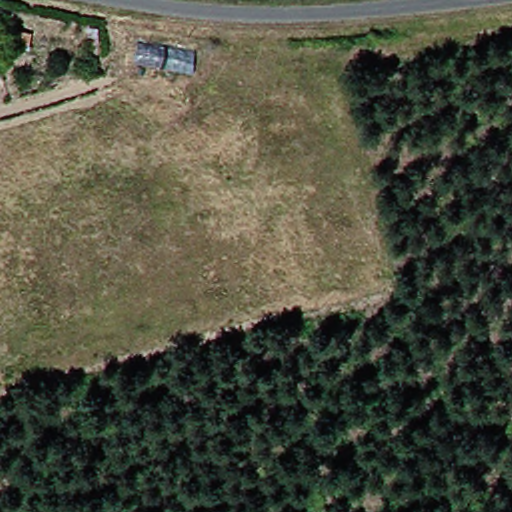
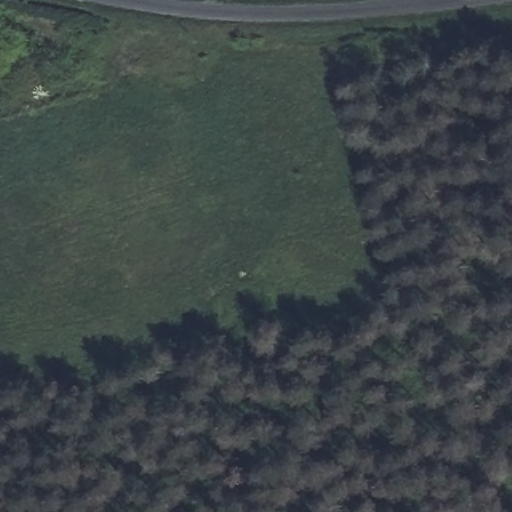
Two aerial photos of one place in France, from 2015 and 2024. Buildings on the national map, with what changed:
unchanged [(21,6),(20,20),(0,17),(0,2),(5,3),(21,6)]

